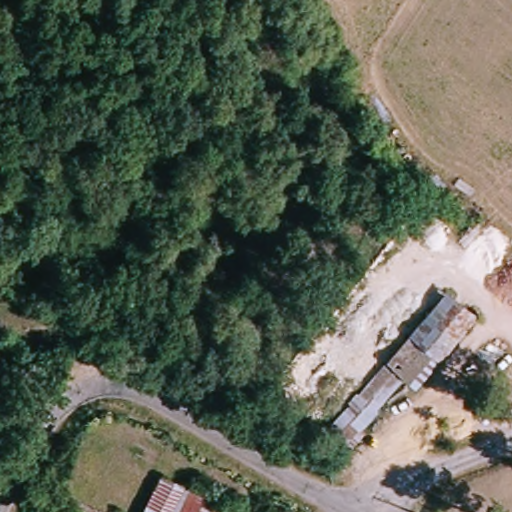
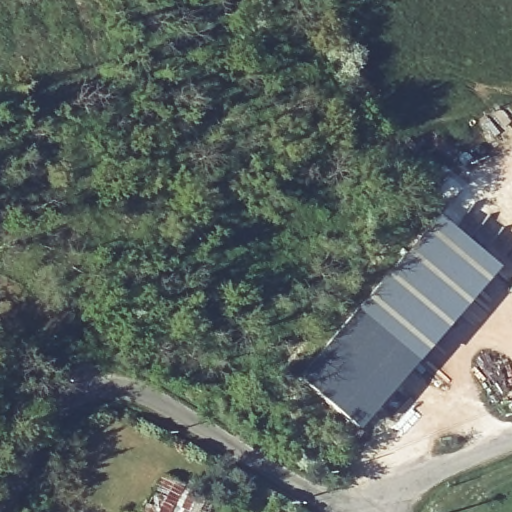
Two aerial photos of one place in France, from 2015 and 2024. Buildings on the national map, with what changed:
new [(355,428),(294,375),(435,213),(496,266),(355,428)]
demolished [(418,387),(389,359),(447,290),(479,317),(418,387)]
demolished [(352,394),(383,414),(358,444),(329,423),(352,394)]
unchanged [(146,512),(163,476),(184,486),(187,481),(214,495),(207,512),(170,512),(160,509),(159,512),(146,512)]

